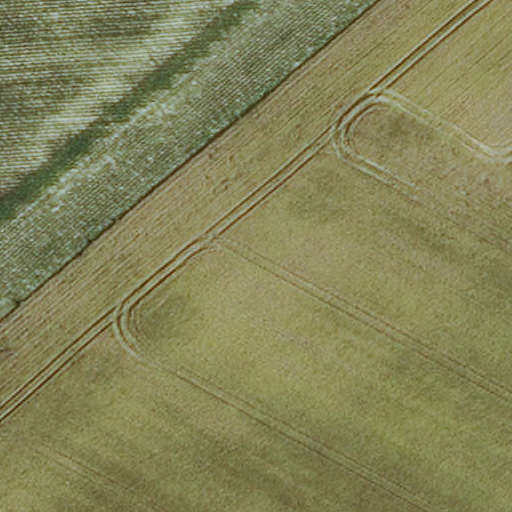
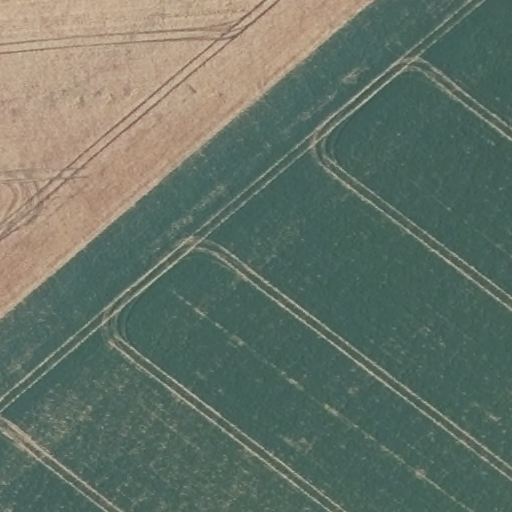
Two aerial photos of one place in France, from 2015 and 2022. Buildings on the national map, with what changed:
[]

